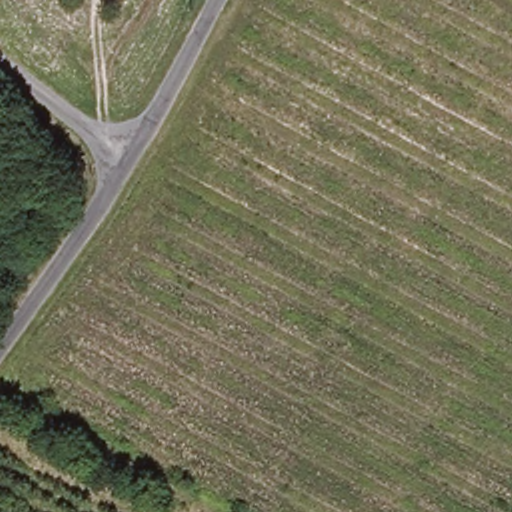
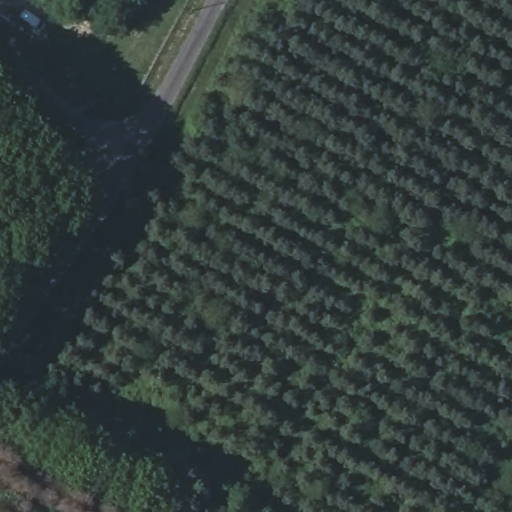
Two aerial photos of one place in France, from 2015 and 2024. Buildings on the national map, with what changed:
[]

